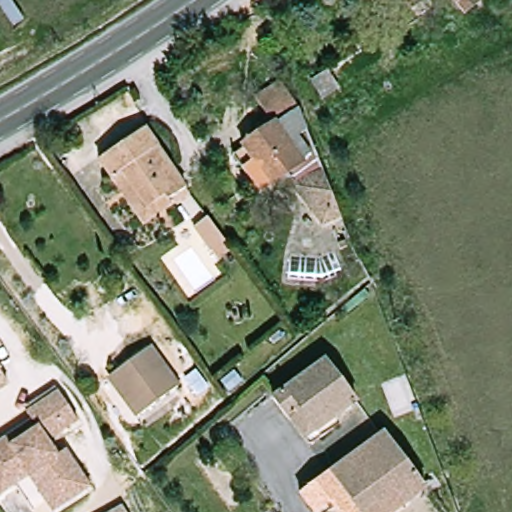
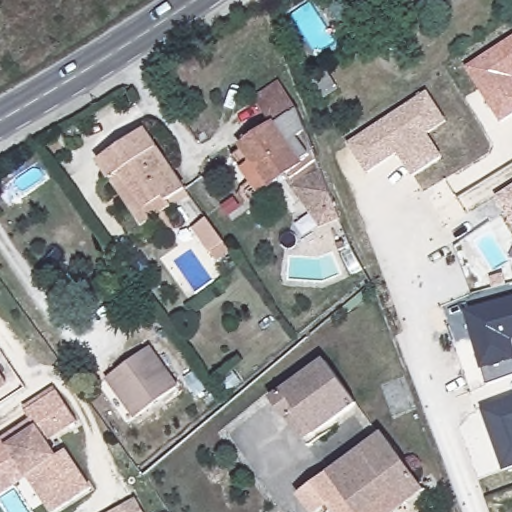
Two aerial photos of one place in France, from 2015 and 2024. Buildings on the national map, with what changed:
unchanged [(456,0),(483,0),(467,13),(456,0)]
new [(465,68),(512,37),(512,116),(502,124),(465,68)]
unchanged [(311,80),(326,69),(339,85),(323,96),(311,80)]
unchanged [(241,146),(273,124),(266,113),(258,101),(256,97),(281,80),(291,95),(300,110),(318,155),(287,176),(261,195),(233,155),(243,148),(241,146)]
new [(413,177),(398,154),(367,174),(348,144),(428,91),(448,122),(429,134),(444,156),(413,177)]
unchanged [(188,191),(143,222),(100,157),(146,126),(174,169),(188,191)]
unchanged [(343,219),(324,226),(287,176),(318,155),(343,219)]
new [(512,188),(512,224),(496,199),(512,188)]
unchanged [(211,221),(226,242),(213,251),(194,225),(207,216),(211,221)]
unchanged [(347,240),(350,246),(343,249),(341,242),(347,240)]
new [(512,378),(487,386),(466,310),(512,298),(512,378)]
unchanged [(179,386),(139,415),(110,375),(150,346),(179,386)]
unchanged [(359,403),(306,440),(275,396),(327,359),(359,403)]
unchanged [(7,380),(0,385),(0,371),(7,380)]
unchanged [(60,390),(78,420),(47,440),(56,455),(65,450),(80,476),(55,492),(33,457),(0,479),(0,439),(5,436),(10,445),(25,435),(20,426),(32,418),(27,410),(60,390)]
new [(512,469),(505,471),(482,411),(512,400),(512,469)]
unchanged [(428,495),(404,512),(359,512),(332,477),(386,439),(428,495)]
unchanged [(33,457),(55,492),(80,476),(89,490),(53,512),(50,512),(39,495),(27,475),(13,484),(0,492),(0,479),(33,457)]
unchanged [(332,477),(359,512),(334,512),(331,508),(326,512),(310,512),(301,500),(332,477)]
unchanged [(122,506),(124,512),(109,512),(122,506)]

